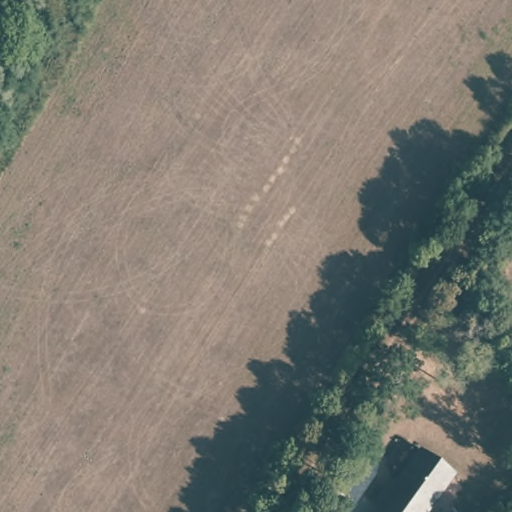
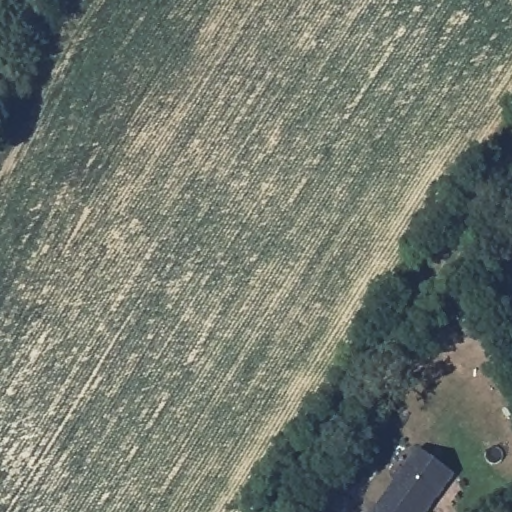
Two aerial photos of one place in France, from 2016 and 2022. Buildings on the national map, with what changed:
unchanged [(452,470),(425,512),(373,512),(415,446),(452,470)]

